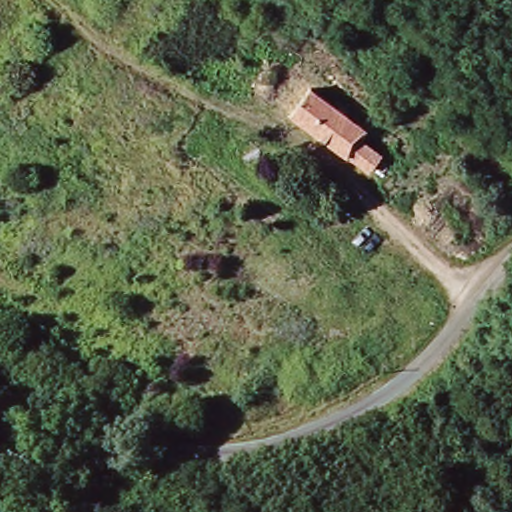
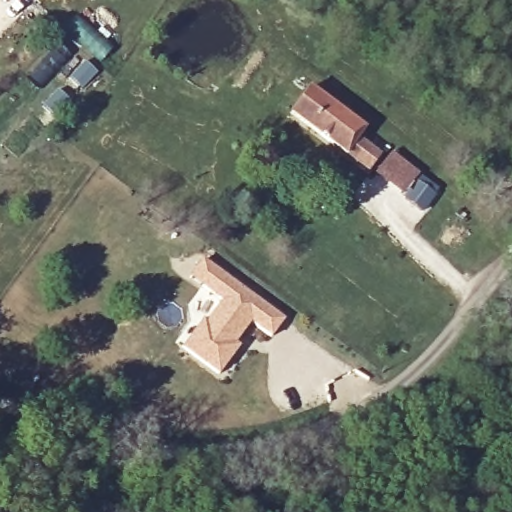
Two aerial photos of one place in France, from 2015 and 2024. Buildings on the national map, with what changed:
unchanged [(347,156),(292,116),(310,89),(365,130),(357,141),(347,156)]
new [(420,177),(437,190),(433,195),(421,211),(404,199),(416,183),(420,177)]
new [(239,347),(218,375),(182,349),(203,321),(206,323),(222,301),(202,287),(190,277),(203,260),(215,269),(284,320),(271,337),(250,322),(240,337),(234,344),(239,347)]

